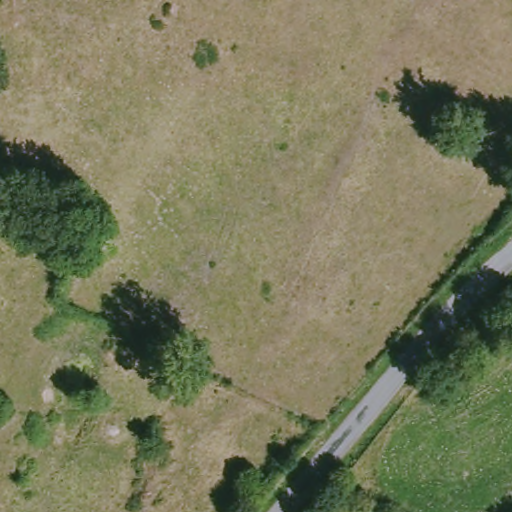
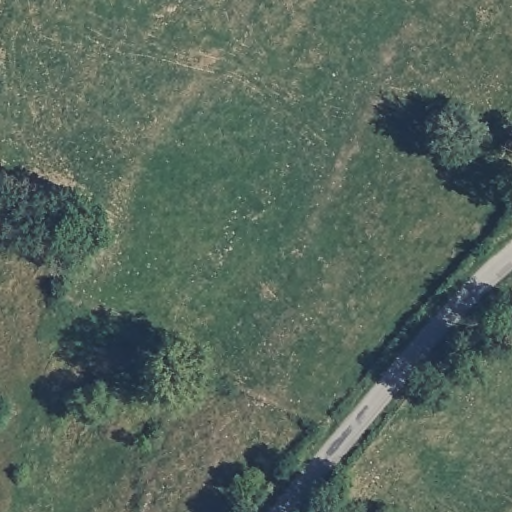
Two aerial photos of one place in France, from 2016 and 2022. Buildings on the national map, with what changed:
[]

